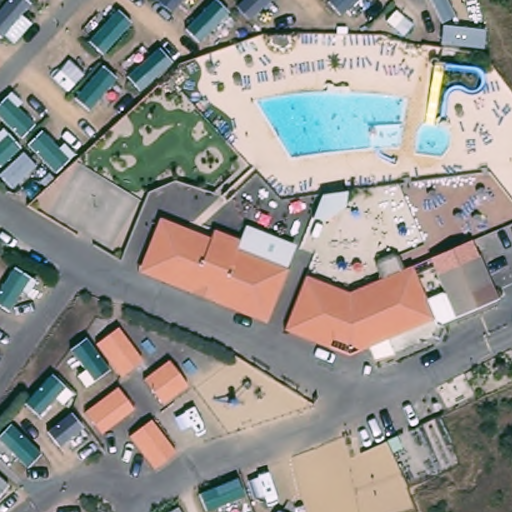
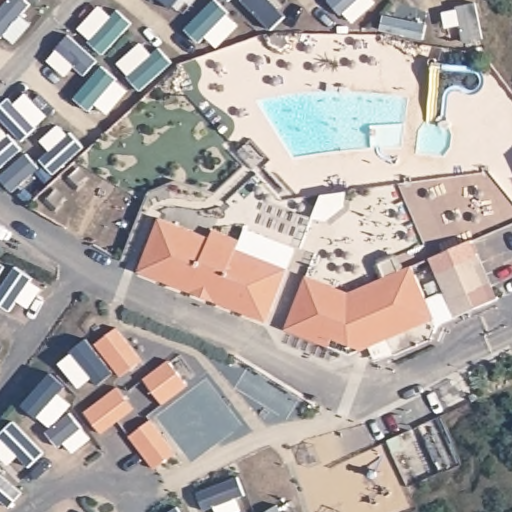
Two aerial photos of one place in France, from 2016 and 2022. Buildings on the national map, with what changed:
unchanged [(160,222),(211,242),(214,231),(240,240),(237,252),(288,269),(271,314),(144,266),(160,222)]
unchanged [(501,296),(480,305),(460,314),(457,309),(443,272),(484,254),(496,283),(501,296)]
unchanged [(432,339),(395,355),(392,348),(387,338),(363,351),(333,339),(328,348),(288,331),(306,278),(332,288),(349,293),(406,268),(412,265),(438,318),(432,339)]
unchanged [(271,314),(268,324),(140,277),(144,266),(271,314)]
unchanged [(143,363),(123,377),(99,345),(117,329),(143,363)]
unchanged [(189,386),(165,405),(147,381),(170,362),(189,386)]
unchanged [(477,380),(453,393),(448,380),(470,368),(477,380)]
unchanged [(135,413),(105,436),(87,415),(117,390),(135,413)]
unchanged [(175,453),(158,469),(133,437),(152,424),(175,453)]

